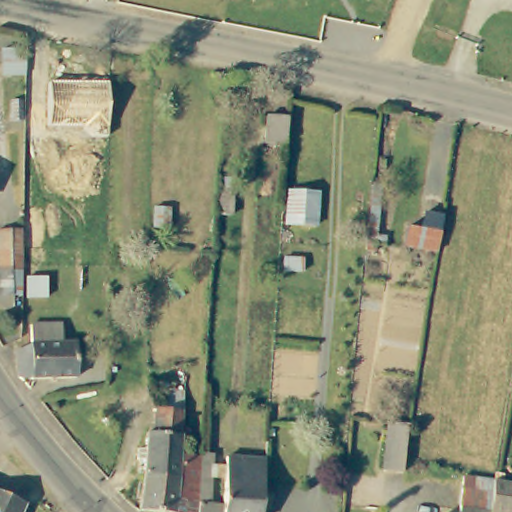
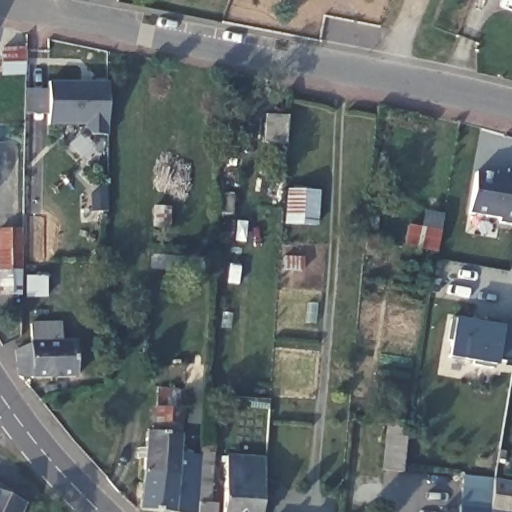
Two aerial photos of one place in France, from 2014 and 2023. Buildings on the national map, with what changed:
unchanged [(25,58),(24,85),(2,84),(2,57),(25,58)]
unchanged [(108,135),(85,136),(84,126),(49,126),(48,83),(108,82),(108,135)]
unchanged [(289,119),(287,144),(265,141),(266,118),(289,119)]
new [(500,224),(501,219),(467,214),(473,174),(495,177),(496,172),(508,173),(509,168),(512,169),(512,225),(500,224)]
unchanged [(316,224),(287,222),(290,190),(318,192),(316,224)]
unchanged [(435,250),(416,247),(406,245),(409,227),(419,229),(422,213),(441,216),(435,250)]
unchanged [(375,246),(366,245),(368,219),(378,220),(375,246)]
unchanged [(0,297),(0,234),(16,235),(16,297),(0,297)]
new [(496,358),(495,368),(446,360),(454,317),(480,322),(481,317),(512,323),(512,362),(496,358)]
unchanged [(62,328),(61,347),(75,347),(74,377),(17,378),(13,350),(30,350),(30,327),(62,328)]
unchanged [(148,433),(154,433),(156,409),(183,411),(181,432),(178,476),(145,474),(148,433)]
unchanged [(409,426),(405,461),(403,473),(386,473),(389,425),(409,426)]
unchanged [(195,434),(195,454),(201,454),(198,512),(174,512),(141,510),(144,484),(145,474),(178,476),(181,432),(195,434)]
unchanged [(201,454),(201,451),(213,451),(212,455),(210,500),(217,501),(217,512),(198,512),(201,454)]
unchanged [(266,458),(263,512),(224,512),(227,456),(266,458)]
unchanged [(466,477),(491,478),(486,512),(457,512),(462,477),(466,477)]
unchanged [(512,482),(512,512),(488,512),(492,478),(512,482)]
unchanged [(23,512),(0,512),(0,493),(26,505),(23,512)]

